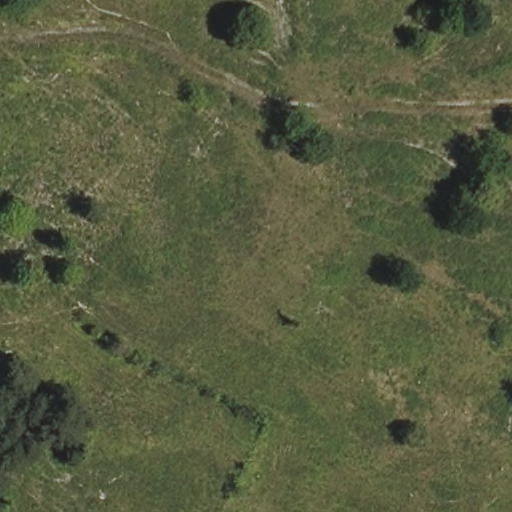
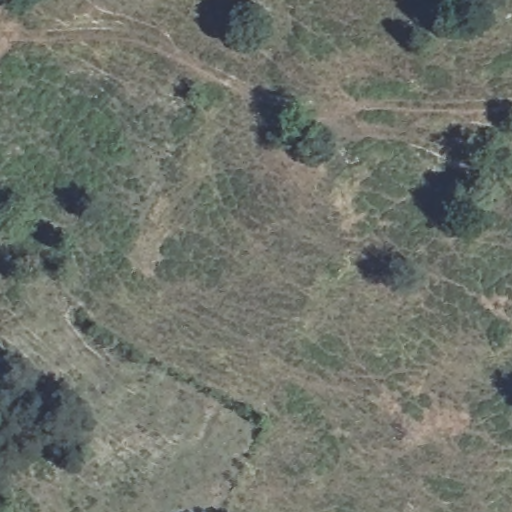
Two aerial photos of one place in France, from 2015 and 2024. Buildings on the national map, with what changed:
unchanged [(282,162),(278,134),(298,129),(302,152),(282,162)]

